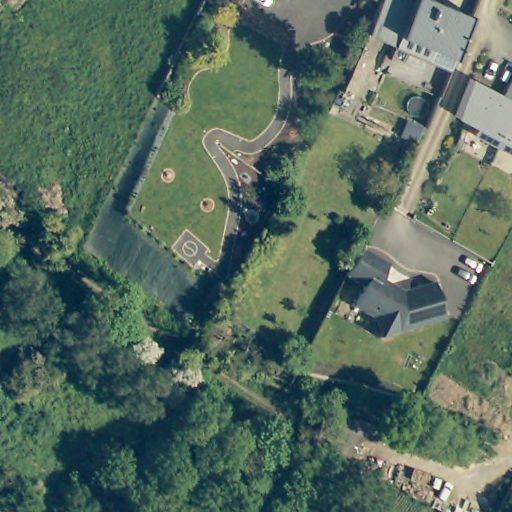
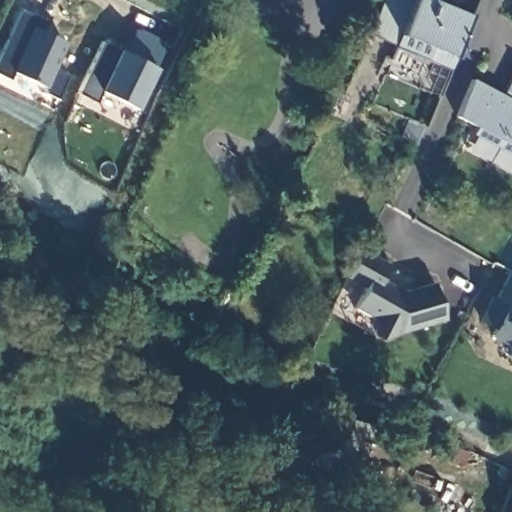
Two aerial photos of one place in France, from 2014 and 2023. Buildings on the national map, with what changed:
unchanged [(477,7),(459,48),(398,25),(393,37),(366,23),(377,0),(458,0),(477,7)]
new [(23,8),(50,21),(45,31),(67,42),(55,66),(72,75),(60,99),(48,93),(45,86),(14,71),(10,79),(0,74),(0,56),(23,8)]
new [(106,40),(131,53),(143,29),(172,44),(138,109),(103,91),(98,102),(80,93),(106,40)]
unchanged [(474,79),(504,95),(512,80),(512,153),(474,133),(477,126),(458,116),(463,104),(474,79)]
unchanged [(404,137),(411,120),(426,126),(419,143),(404,137)]
unchanged [(390,259),(382,274),(404,286),(435,278),(446,314),(379,332),(372,312),(353,302),(365,282),(347,271),(362,244),(390,259)]
unchanged [(495,298),(509,269),(512,271),(512,358),(507,354),(504,345),(487,336),(491,329),(477,321),(489,296),(495,298)]

